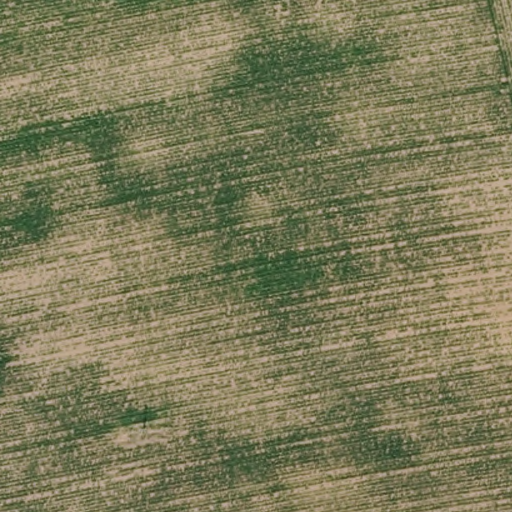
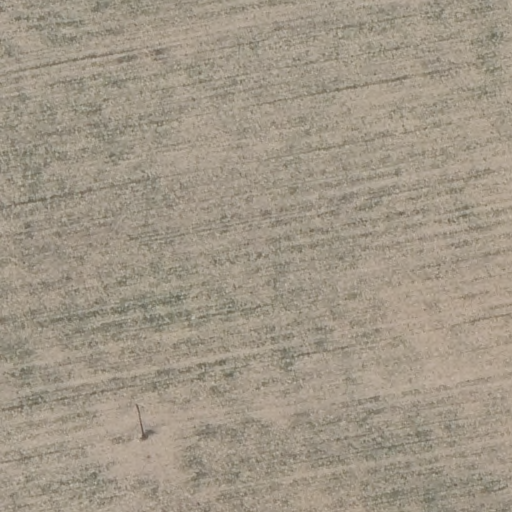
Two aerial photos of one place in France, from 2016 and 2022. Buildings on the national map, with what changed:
[]

